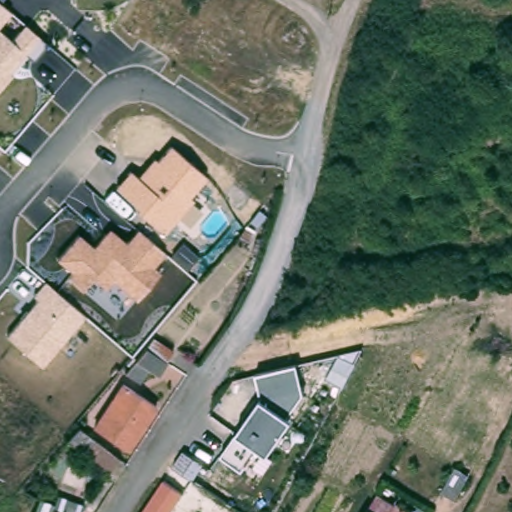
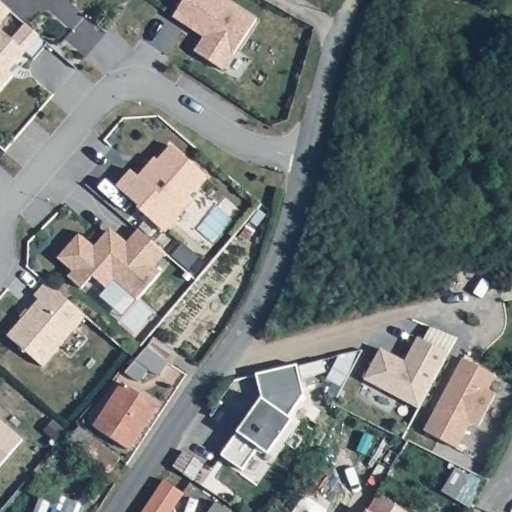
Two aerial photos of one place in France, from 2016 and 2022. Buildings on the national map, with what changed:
new [(231,0),(257,17),(223,70),(194,51),(204,37),(173,16),(184,0),(231,0)]
unchanged [(11,10),(0,25),(0,1),(11,10)]
unchanged [(11,39),(24,23),(47,44),(33,59),(26,54),(0,86),(0,30),(11,39)]
unchanged [(114,187),(130,170),(136,175),(153,156),(157,160),(170,145),(206,177),(190,196),(194,201),(191,203),(202,213),(189,228),(177,219),(163,235),(114,187)]
unchanged [(154,265),(161,271),(136,300),(113,281),(105,289),(93,277),(81,288),(67,275),(72,270),(56,257),(78,230),(94,245),(112,227),(126,241),(139,230),(164,254),(154,265)]
unchanged [(6,336),(37,300),(32,297),(46,281),(85,315),(42,367),(6,336)]
new [(381,348),(405,361),(418,336),(449,353),(419,408),(365,379),(381,348)]
unchanged [(148,370),(140,382),(125,372),(147,347),(153,338),(173,351),(167,360),(157,376),(148,370)]
new [(454,376),(464,358),(495,375),(486,390),(495,395),(479,426),(470,421),(456,447),(425,431),(450,385),(454,376)]
unchanged [(287,416),(291,418),(268,453),(258,446),(241,469),(221,456),(260,398),(256,375),(299,364),(305,393),(287,416)]
unchanged [(157,406),(129,450),(93,427),(122,384),(157,406)]
new [(23,440),(0,466),(0,420),(23,440)]
unchanged [(120,458),(109,472),(67,440),(78,426),(120,458)]
unchanged [(145,507),(163,481),(182,451),(202,465),(183,494),(172,512),(142,512),(145,507)]
unchanged [(469,476),(454,500),(441,492),(455,468),(469,476)]
unchanged [(372,496),(390,506),(391,504),(405,512),(362,512),(372,496)]
unchanged [(52,510),(58,512),(52,512),(52,510)]

